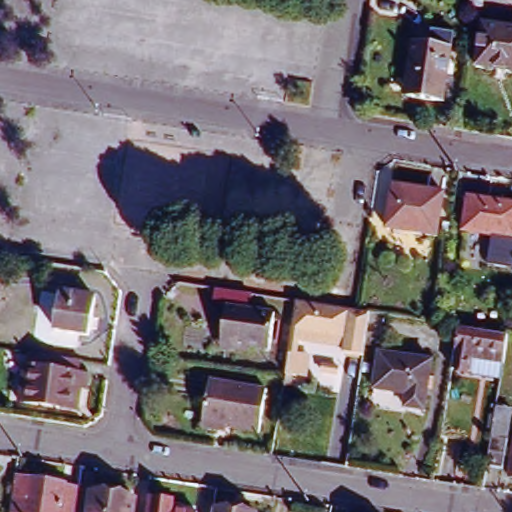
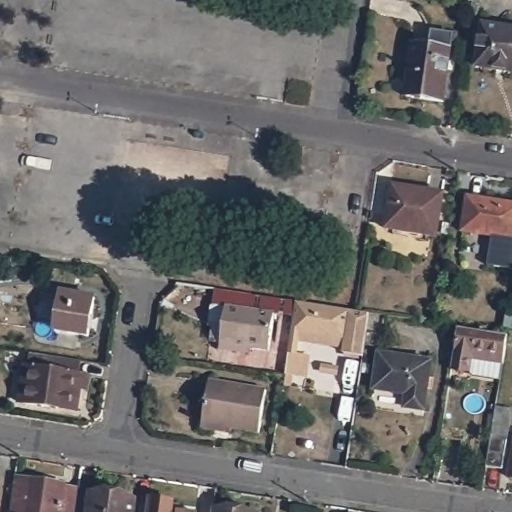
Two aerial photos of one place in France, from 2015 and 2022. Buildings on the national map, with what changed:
unchanged [(467,4),(442,0),(467,0),(467,4)]
unchanged [(512,27),(512,70),(478,65),(485,23),(512,27)]
unchanged [(452,37),(441,104),(404,98),(412,46),(428,48),(430,33),(452,37)]
unchanged [(444,195),(438,238),(387,230),(394,187),(444,195)]
unchanged [(512,209),(512,245),(469,237),(474,204),(512,209)]
unchanged [(95,299),(90,337),(55,332),(61,294),(95,299)]
unchanged [(281,377),(284,357),(293,305),(351,315),(366,317),(363,337),(311,328),(311,334),(297,331),(293,358),(289,379),(281,377)]
unchanged [(221,348),(222,342),(228,306),(276,314),(271,350),(251,347),(249,353),(221,348)]
unchanged [(504,334),(498,374),(467,369),(464,381),(446,378),(454,326),(504,334)]
unchanged [(434,365),(428,415),(404,411),(407,396),(376,392),(381,357),(434,365)]
unchanged [(76,415),(17,405),(22,368),(33,369),(34,359),(81,366),(79,377),(81,378),(76,415)]
unchanged [(201,429),(203,423),(208,381),(267,391),(261,432),(228,426),(228,433),(201,429)]
unchanged [(508,470),(512,444),(512,470),(508,470)]
unchanged [(67,489),(79,491),(79,493),(77,512),(9,512),(14,480),(67,487),(67,489)]
unchanged [(131,501),(130,512),(77,512),(79,493),(131,501)]
unchanged [(174,503),(173,512),(147,512),(149,499),(174,503)]
unchanged [(219,512),(212,512),(213,511),(219,512)]

